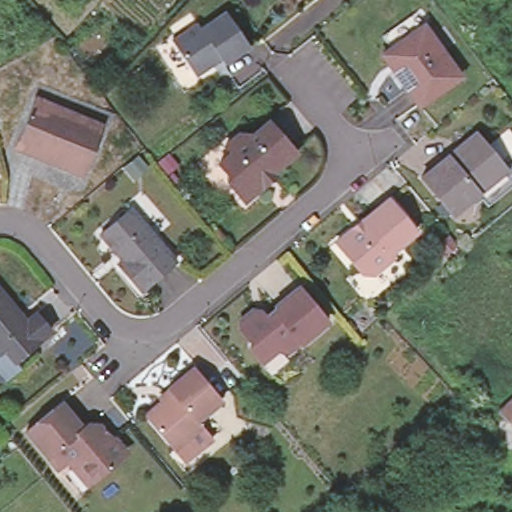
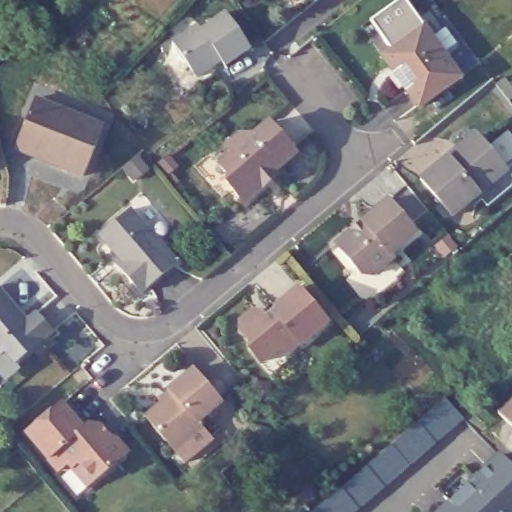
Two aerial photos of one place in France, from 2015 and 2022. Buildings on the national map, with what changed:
unchanged [(297,1),(297,0),(299,0),(297,1)]
unchanged [(224,66),(221,64),(195,79),(172,43),(198,26),(202,30),(226,14),(249,49),(224,66)]
unchanged [(413,107),(377,55),(386,50),(420,27),(455,79),(413,107)]
unchanged [(15,150),(36,101),(105,130),(84,180),(15,150)]
unchanged [(255,188),(238,202),(222,184),(221,174),(215,165),(214,164),(225,153),(220,146),(232,135),(246,136),(263,122),(290,153),(265,174),(268,177),(255,188)]
unchanged [(480,202),(470,191),(446,211),(415,175),(440,153),(451,145),(463,134),(473,135),(500,166),(508,177),(480,202)]
unchanged [(385,256),(386,260),(371,274),(357,273),(333,243),(386,200),(412,232),(385,256)]
unchanged [(137,298),(115,273),(115,264),(117,260),(100,239),(129,212),(175,265),(137,298)]
unchanged [(330,320),(303,342),(301,340),(291,349),(283,350),(281,348),(265,361),(252,346),(252,338),(243,327),(244,320),(255,310),(262,310),(270,318),(281,308),(279,306),(301,287),(330,320)]
unchanged [(15,321),(21,327),(34,316),(48,333),(14,365),(3,353),(0,354),(0,293),(19,316),(15,321)]
unchanged [(182,461),(171,448),(143,413),(155,403),(152,399),(165,388),(191,366),(218,399),(193,420),(198,425),(208,439),(182,461)]
unchanged [(495,410),(512,392),(512,427),(495,410)]
new [(355,512),(311,512),(445,397),(465,418),(355,512)]
unchanged [(66,471),(60,465),(51,473),(20,435),(54,405),(60,401),(80,425),(91,427),(92,432),(98,440),(108,440),(116,450),(115,459),(88,481),(80,488),(66,471)]
new [(436,512),(498,451),(512,466),(512,512),(436,512)]

